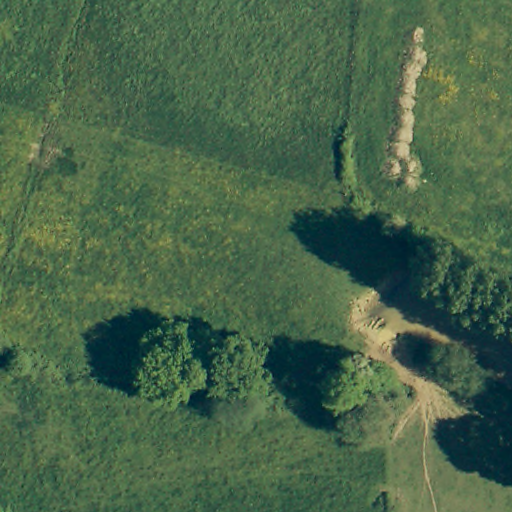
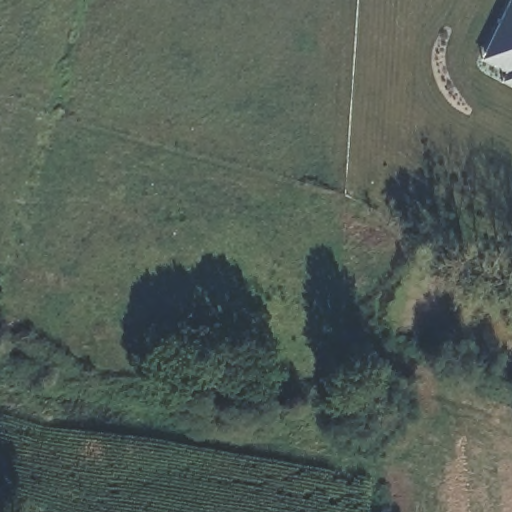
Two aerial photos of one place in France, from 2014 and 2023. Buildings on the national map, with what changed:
new [(505,73),(479,61),(507,0),(510,0),(512,1),(512,89),(500,83),(505,73)]

